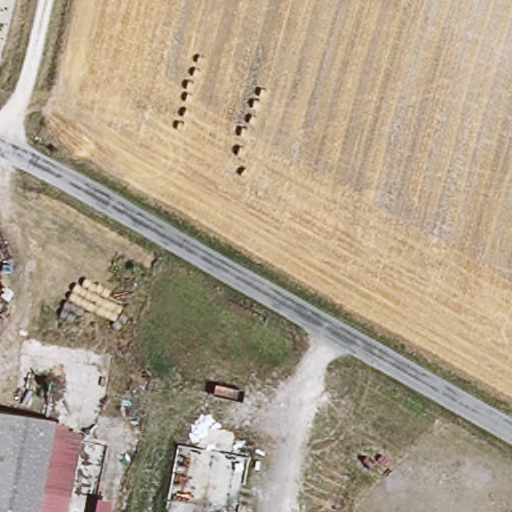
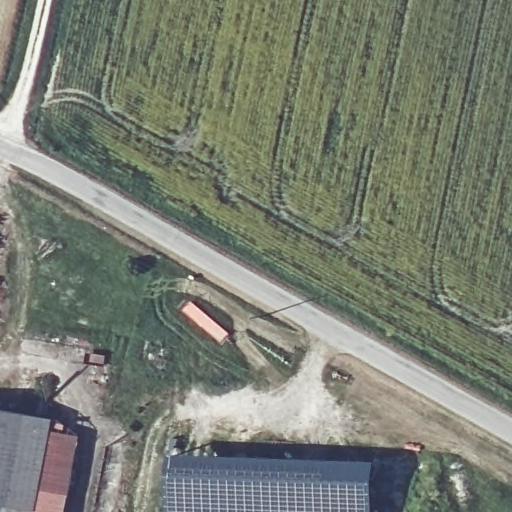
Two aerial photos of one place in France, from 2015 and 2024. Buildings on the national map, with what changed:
unchanged [(43,426),(34,512),(0,512),(0,403),(44,410),(43,426)]
unchanged [(61,512),(34,512),(43,426),(69,428),(61,512)]
demolished [(242,452),(230,512),(157,512),(171,439),(242,452)]
new [(373,463),(371,512),(171,512),(174,456),(373,463)]

